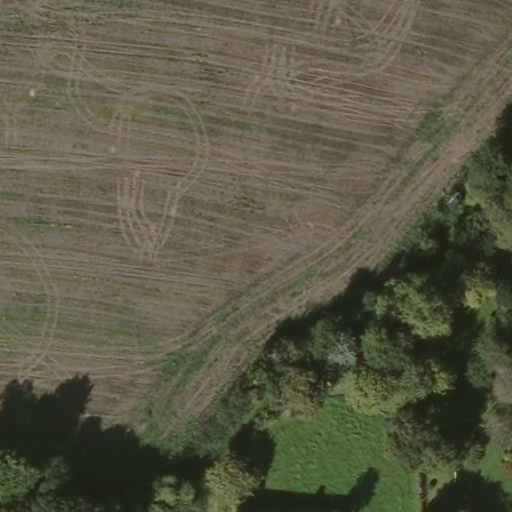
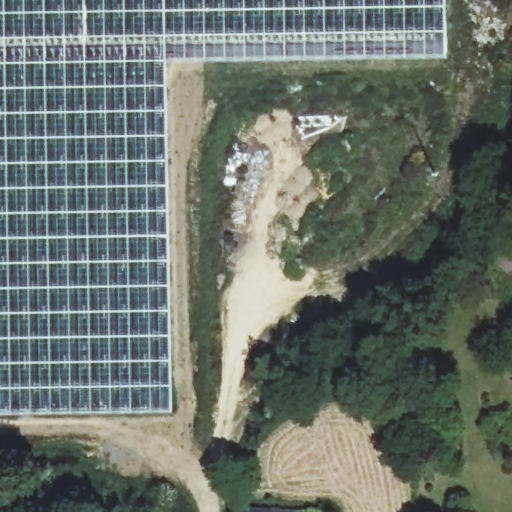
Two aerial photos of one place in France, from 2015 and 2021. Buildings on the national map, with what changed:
new [(165,59),(172,410),(0,415),(0,0),(446,0),(447,56),(165,59)]
unchanged [(328,512),(240,512),(240,506),(328,512)]

